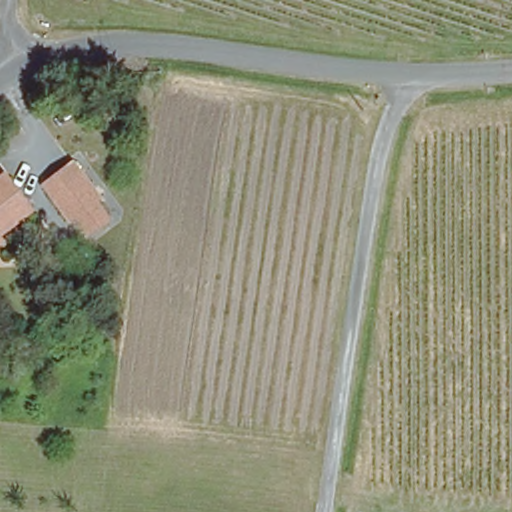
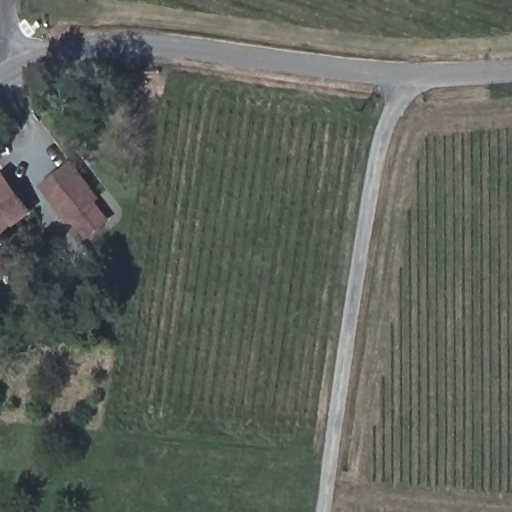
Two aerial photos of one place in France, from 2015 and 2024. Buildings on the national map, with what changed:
unchanged [(70,215),(67,217),(40,182),(70,161),(96,196),(91,199),(104,220),(90,230),(83,234),(70,215)]
unchanged [(6,177),(33,215),(0,237),(0,182),(6,177)]
unchanged [(4,243),(0,246),(0,238),(4,243)]

